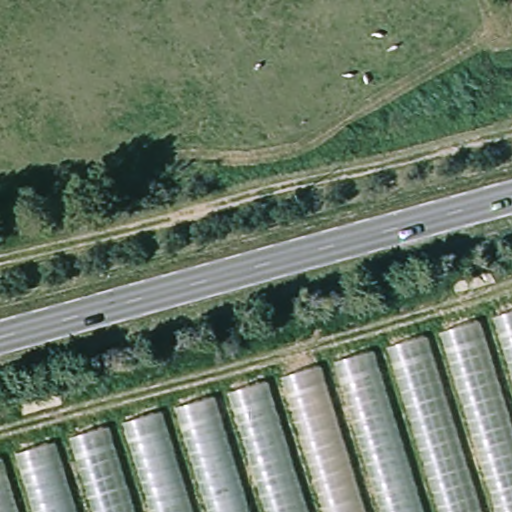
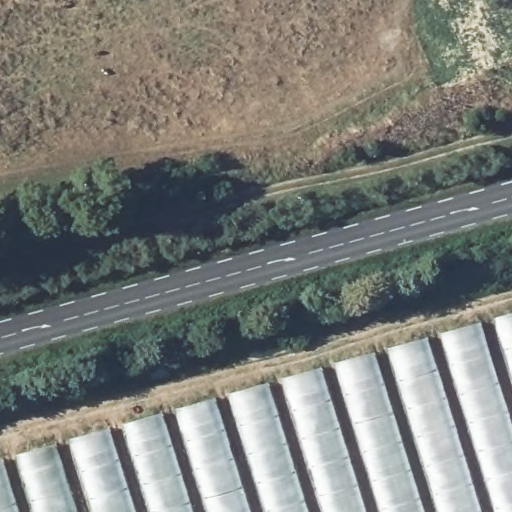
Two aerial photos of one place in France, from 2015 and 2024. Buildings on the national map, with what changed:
unchanged [(0,454),(512,309),(512,512),(0,512),(0,454)]

